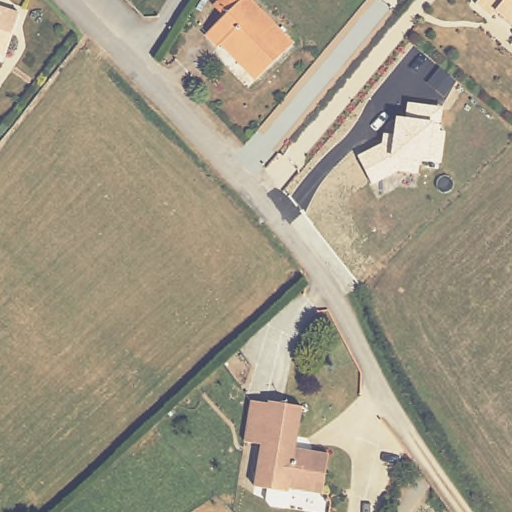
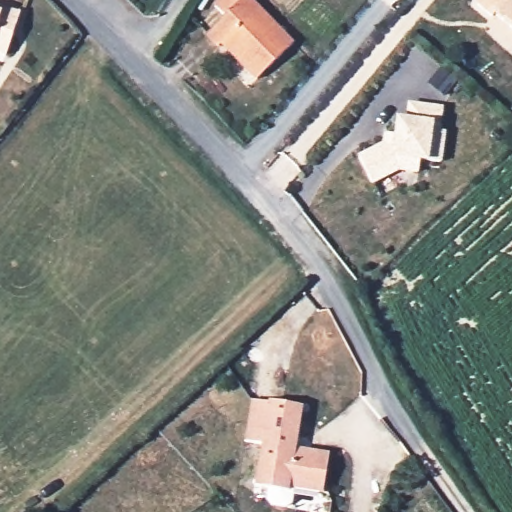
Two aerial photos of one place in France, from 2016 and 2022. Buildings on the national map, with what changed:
unchanged [(261,80),(240,60),(244,56),(228,40),(221,48),(208,35),(243,0),(252,0),(296,44),(261,80)]
unchanged [(494,20),(478,6),(484,0),(512,0),(512,27),(497,16),(494,20)]
unchanged [(9,52),(0,49),(0,1),(24,10),(9,52)]
unchanged [(443,106),(440,131),(445,130),(442,163),(422,163),(417,175),(397,172),(372,185),(357,157),(381,144),(382,134),(392,134),(394,119),(406,119),(406,102),(443,106)]
unchanged [(323,498),(290,493),(289,497),(256,492),(261,449),(245,446),(251,405),(267,408),(267,406),(301,410),(296,453),(328,457),(323,498)]

